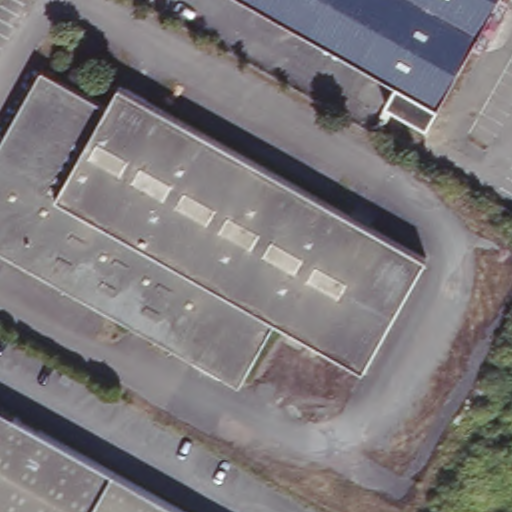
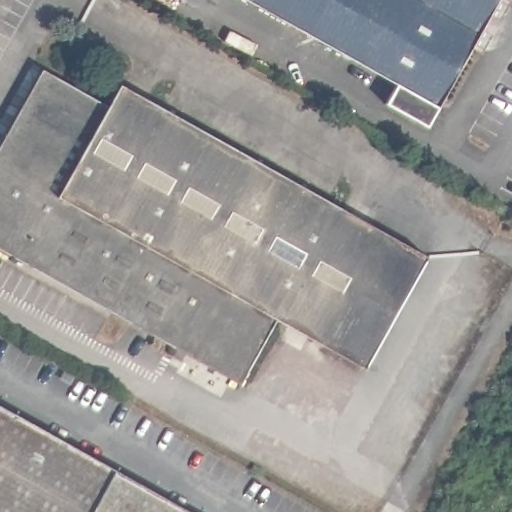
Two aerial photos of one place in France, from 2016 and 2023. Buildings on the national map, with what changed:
unchanged [(388,106),(400,86),(240,0),(503,0),(432,130),(388,106)]
unchanged [(108,105),(122,82),(340,200),(303,266),(277,312),(240,377),(176,342),(0,247),(0,150),(42,70),(108,105)]
unchanged [(427,247),(392,312),(303,266),(340,200),(427,247)]
unchanged [(392,312),(366,361),(277,312),(303,266),(392,312)]
unchanged [(199,512),(0,512),(0,401),(199,512)]

